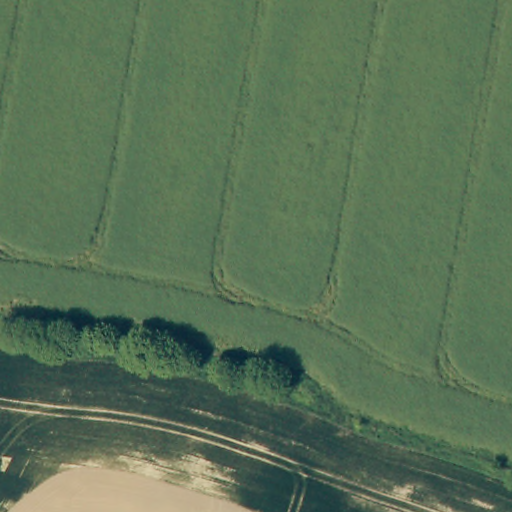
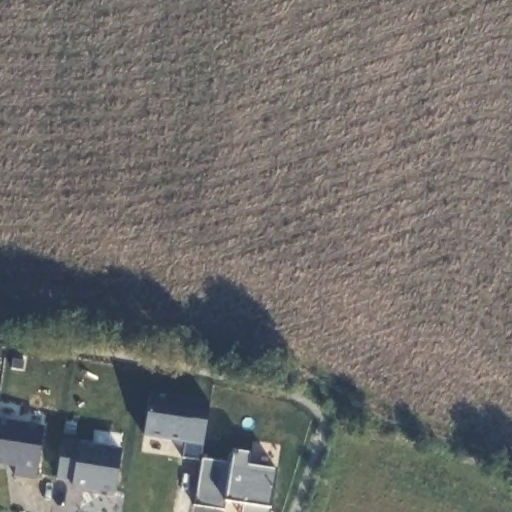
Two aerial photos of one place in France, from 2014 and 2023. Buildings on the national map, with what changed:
new [(142,436),(150,393),(209,401),(204,446),(202,458),(202,460),(184,457),(185,443),(142,436)]
new [(0,419),(44,426),(36,468),(35,479),(14,476),(15,467),(0,465),(0,419)]
new [(69,486),(70,482),(57,480),(62,441),(79,443),(123,450),(116,492),(69,486)]
new [(234,464),(235,451),(251,452),(250,465),(276,468),(269,508),(269,512),(242,512),(243,505),(224,502),(223,510),(195,505),(201,461),(202,458),(234,464)]

